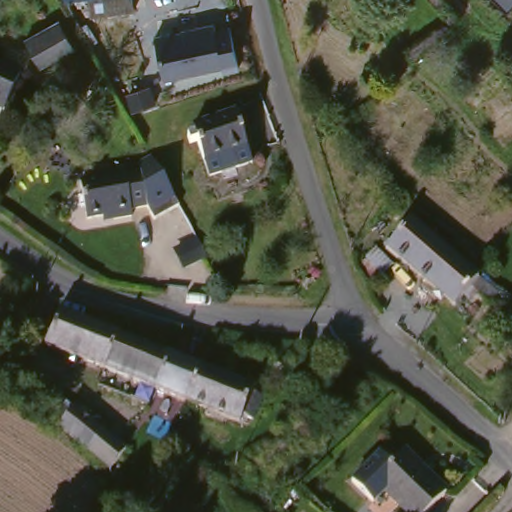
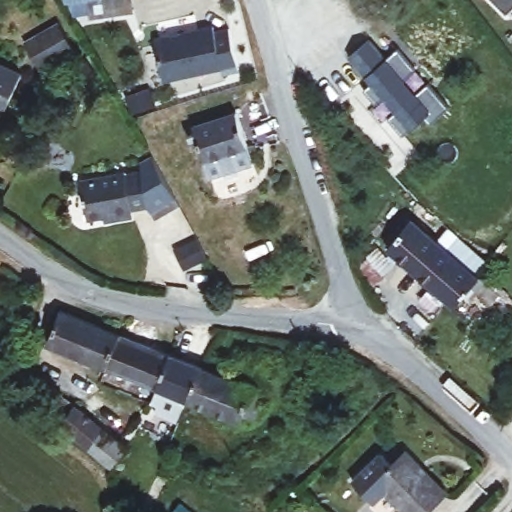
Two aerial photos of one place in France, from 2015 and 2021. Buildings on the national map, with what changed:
unchanged [(136,11),(93,17),(89,0),(134,0),(136,11)]
unchanged [(492,0),(512,0),(512,3),(504,11),(492,0)]
unchanged [(234,19),(246,60),(230,64),(229,59),(172,75),(159,34),(218,17),(219,23),(234,19)]
unchanged [(62,22),(77,49),(42,67),(27,41),(62,22)]
new [(369,39),(386,58),(399,47),(417,67),(405,78),(417,92),(429,82),(451,106),(432,122),(426,115),(405,134),(389,117),(397,110),(384,97),(377,104),(364,89),(375,80),(370,74),(367,77),(349,57),(369,39)]
unchanged [(0,119),(0,62),(24,72),(7,109),(6,108),(1,120),(0,119)]
unchanged [(79,80),(91,87),(81,105),(68,97),(78,79),(79,80)]
unchanged [(132,101),(155,94),(159,107),(136,114),(132,101)]
unchanged [(203,152),(192,117),(234,102),(246,137),(251,153),(233,159),(208,167),(203,152)]
unchanged [(139,174),(138,166),(150,159),(157,170),(178,208),(153,222),(146,211),(130,215),(131,221),(112,225),(111,220),(87,224),(79,185),(139,174)]
unchanged [(498,312),(478,295),(463,312),(395,254),(419,226),(477,276),(487,285),(507,301),(498,312)]
unchanged [(384,252),(401,270),(392,281),(393,282),(383,292),(364,272),(384,252)]
unchanged [(50,345),(65,311),(124,335),(110,369),(50,345)]
unchanged [(175,356),(161,390),(110,369),(124,335),(175,356)]
unchanged [(206,368),(192,403),(161,390),(175,356),(206,368)]
unchanged [(259,391),(257,395),(269,400),(259,422),(248,417),(245,425),(192,403),(206,368),(259,391)]
unchanged [(121,475),(68,432),(52,420),(68,400),(84,412),(137,455),(121,475)]
unchanged [(425,468),(425,471),(450,497),(434,512),(406,512),(379,483),(410,453),(425,468)]

